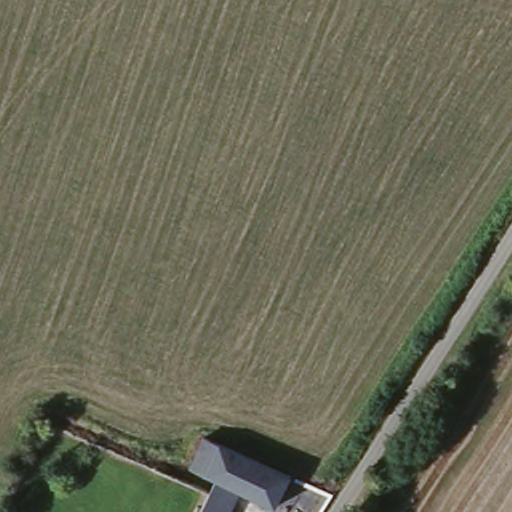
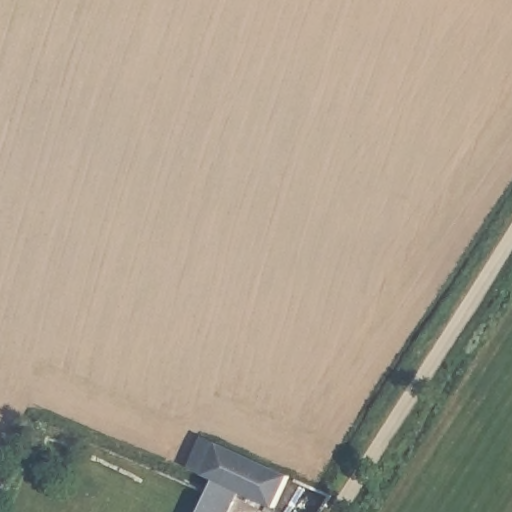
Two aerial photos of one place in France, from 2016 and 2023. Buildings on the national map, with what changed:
unchanged [(274,509),(240,495),(232,512),(197,512),(208,489),(214,479),(188,468),(202,437),(290,477),(274,509)]

